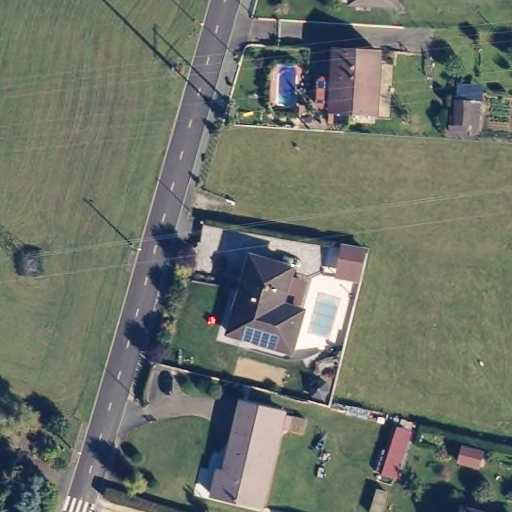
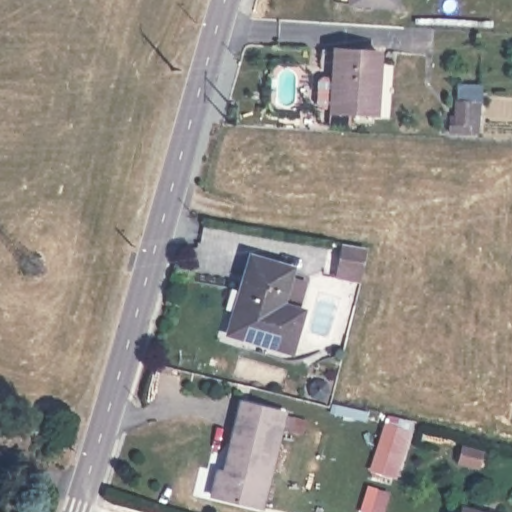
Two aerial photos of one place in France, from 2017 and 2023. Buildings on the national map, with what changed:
unchanged [(346,0),(391,0),(390,11),(351,8),(345,8),(346,0)]
unchanged [(375,114),(349,112),(349,122),(329,121),(329,115),(330,112),(334,50),(379,52),(375,114)]
unchanged [(458,94),(480,95),(480,103),(476,103),(474,133),(448,132),(449,123),(454,124),(455,102),(457,102),(458,94)]
unchanged [(339,260),(341,247),(364,251),(362,264),(339,260)]
unchanged [(272,284),(289,289),(282,316),(286,317),(275,356),(214,338),(220,317),(226,319),(232,297),(226,296),(236,262),(275,274),(272,284)]
unchanged [(283,434),(275,432),(256,512),(253,512),(207,502),(213,477),(225,480),(229,464),(224,463),(237,408),(278,418),(278,420),(285,422),(283,434)]
unchanged [(380,473),(395,426),(412,432),(398,480),(380,473)]

